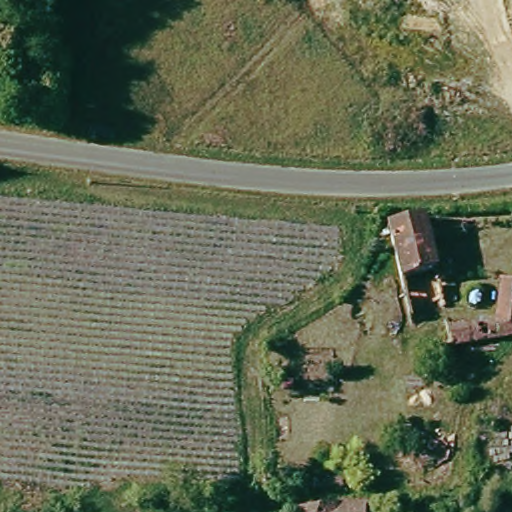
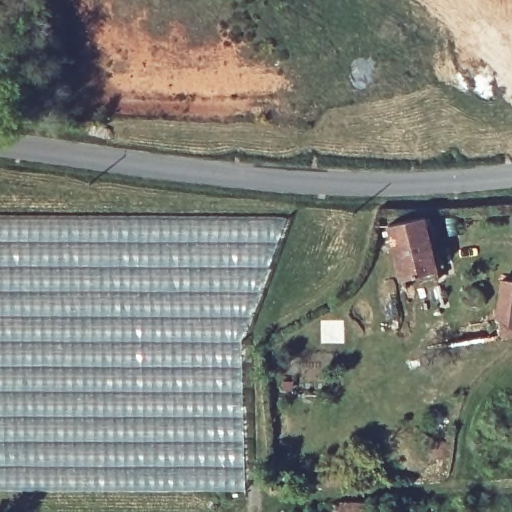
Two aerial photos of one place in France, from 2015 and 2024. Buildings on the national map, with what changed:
unchanged [(383,215),(418,205),(441,282),(399,298),(383,215)]
new [(204,215),(285,217),(281,232),(244,342),(246,491),(106,489),(0,490),(0,216),(96,216),(204,215)]
unchanged [(456,348),(452,332),(497,322),(500,293),(512,292),(512,337),(456,348)]
unchanged [(323,510),(323,512),(291,512),(292,511),(323,510)]
unchanged [(323,512),(323,510),(357,510),(357,512),(323,512)]
demolished [(357,512),(357,510),(422,510),(421,512),(357,512)]

